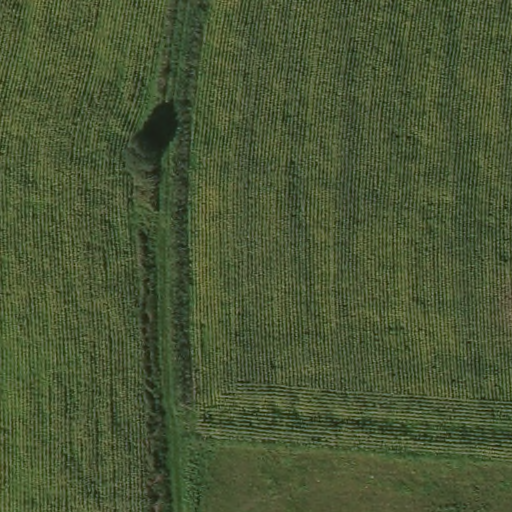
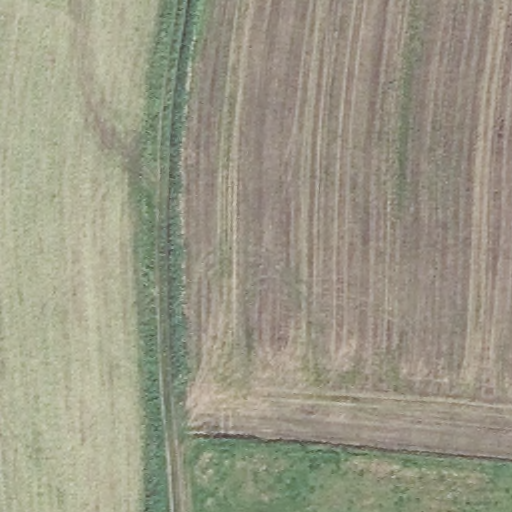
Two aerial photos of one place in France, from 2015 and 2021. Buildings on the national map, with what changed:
[]

